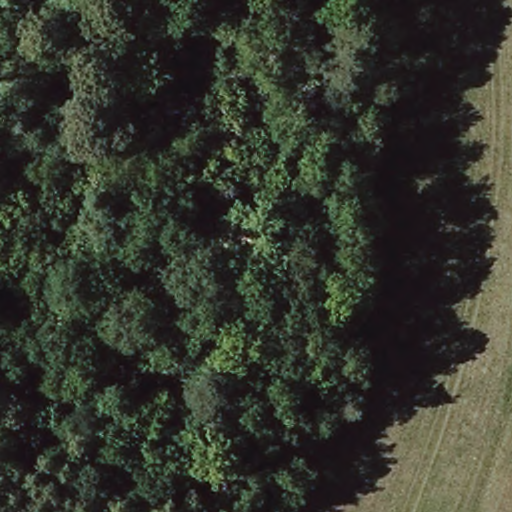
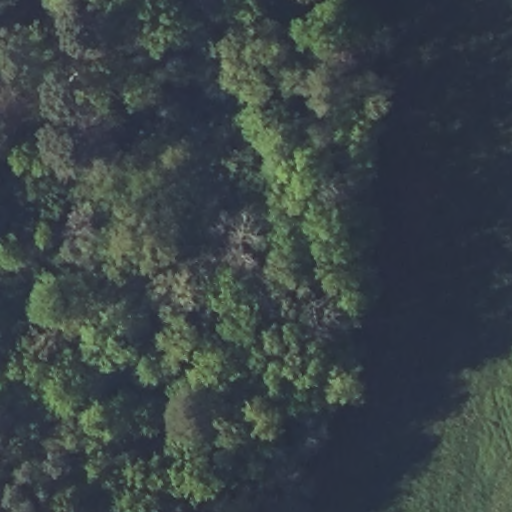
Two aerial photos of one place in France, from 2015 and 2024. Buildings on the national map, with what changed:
[]

